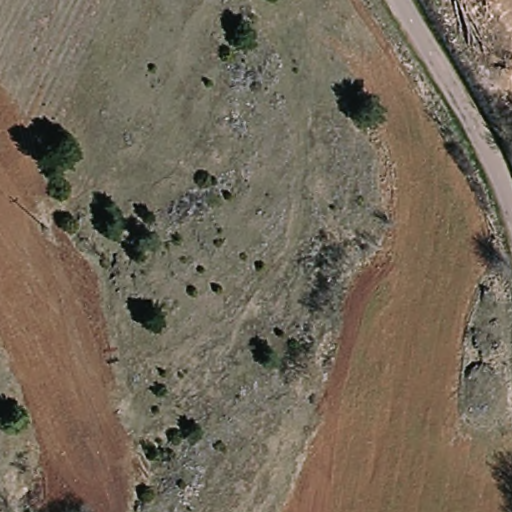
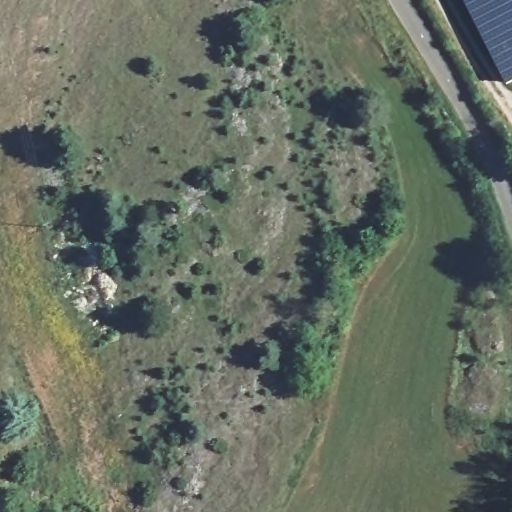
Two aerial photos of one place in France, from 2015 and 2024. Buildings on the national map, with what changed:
new [(464,0),(512,0),(512,82),(507,85),(464,0)]

